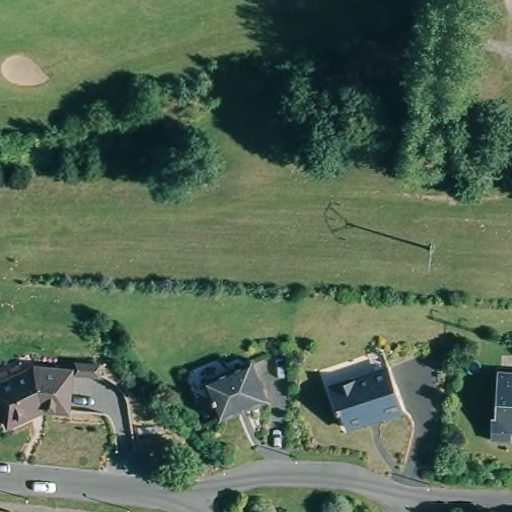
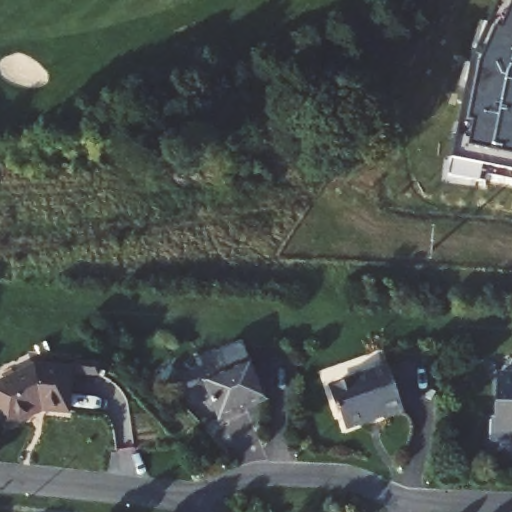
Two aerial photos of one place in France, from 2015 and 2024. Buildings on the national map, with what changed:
new [(487,177),(485,187),(448,176),(502,0),(512,0),(512,185),(487,177)]
unchanged [(260,364),(272,408),(223,422),(209,378),(260,364)]
unchanged [(77,368),(100,368),(100,379),(76,378),(77,368)]
unchanged [(390,368),(405,415),(386,421),(385,415),(372,417),(372,419),(348,426),(344,411),(340,412),(333,384),(390,368)]
unchanged [(506,437),(492,416),(496,373),(512,373),(512,437),(506,437)]
unchanged [(71,375),(71,417),(40,417),(4,430),(0,420),(0,388),(35,375),(71,375)]

